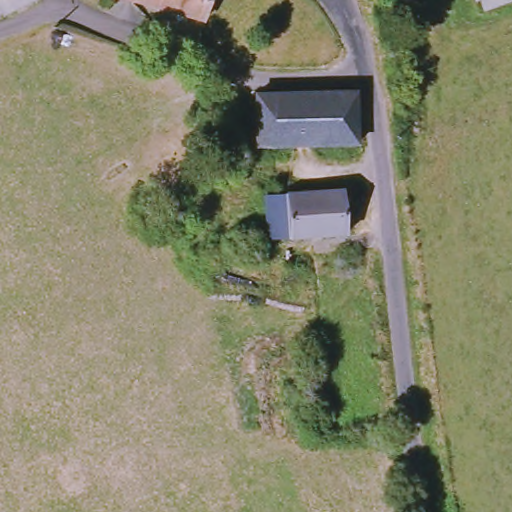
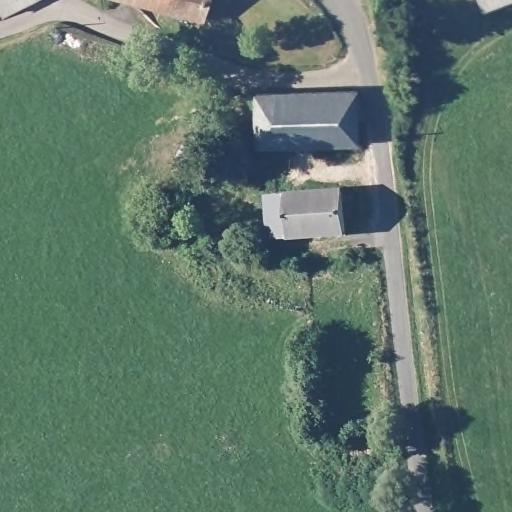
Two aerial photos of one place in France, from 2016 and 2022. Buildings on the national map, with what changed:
unchanged [(0,6),(0,0),(13,0),(0,6)]
unchanged [(200,18),(123,0),(204,0),(200,18)]
unchanged [(485,8),(482,0),(505,0),(485,8)]
unchanged [(357,88),(359,144),(254,146),(252,90),(357,88)]
unchanged [(337,188),(344,229),(267,241),(261,200),(337,188)]

